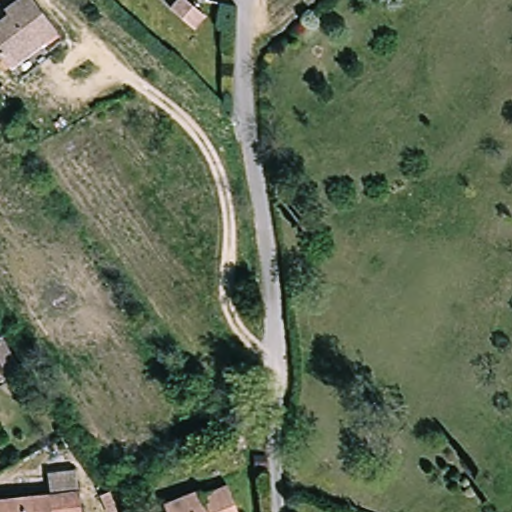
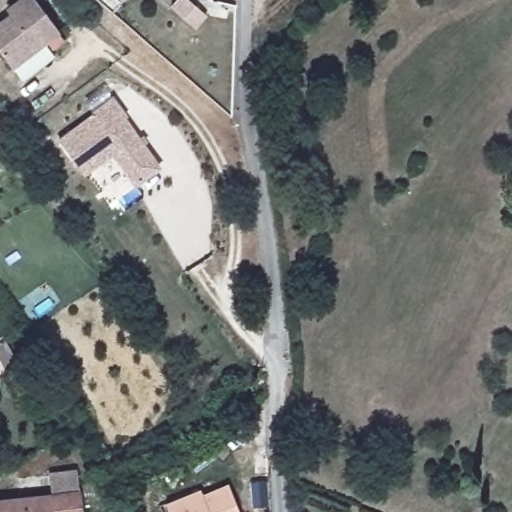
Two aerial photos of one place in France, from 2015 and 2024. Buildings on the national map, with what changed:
unchanged [(62,44),(28,69),(17,55),(0,32),(0,15),(20,0),(51,0),(65,19),(72,28),(59,38),(62,44)]
new [(191,0),(208,14),(196,27),(172,7),(177,0),(191,0)]
new [(94,114),(92,112),(112,98),(126,116),(124,118),(159,167),(135,184),(112,153),(83,173),(59,139),(94,114)]
unchanged [(0,500),(49,495),(47,475),(70,472),(79,471),(80,482),(81,512),(0,512),(0,500)]
unchanged [(167,499),(207,485),(208,490),(229,485),(239,512),(172,512),(167,499)]

